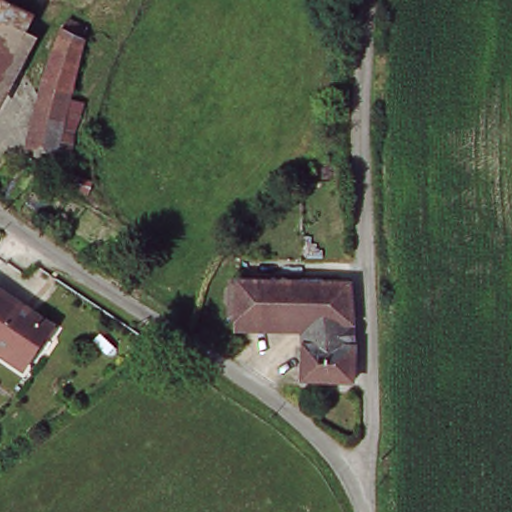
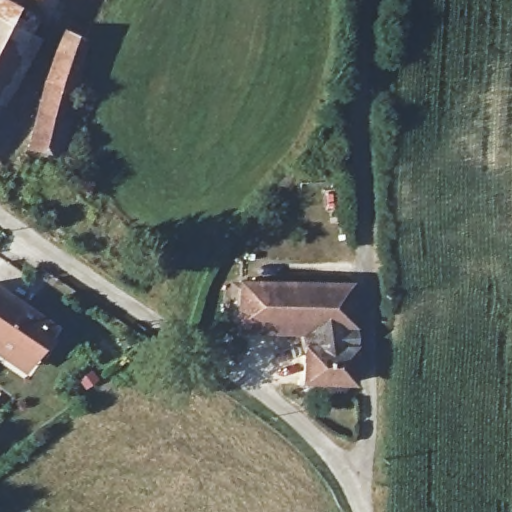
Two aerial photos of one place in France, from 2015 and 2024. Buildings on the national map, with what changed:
unchanged [(0,57),(0,1),(40,23),(17,66),(0,57)]
unchanged [(77,158),(62,154),(31,147),(46,74),(71,19),(92,28),(75,103),(87,105),(77,158)]
unchanged [(0,99),(0,57),(17,66),(0,99)]
unchanged [(352,281),(354,345),(305,341),(307,318),(306,282),(352,281)]
unchanged [(242,320),(239,283),(306,282),(307,318),(242,320)]
unchanged [(25,363),(0,347),(0,283),(22,298),(18,304),(49,324),(25,363)]
unchanged [(355,379),(304,374),(305,341),(354,345),(355,379)]

